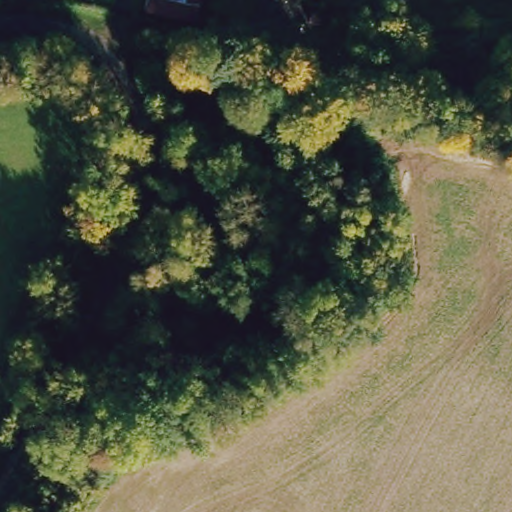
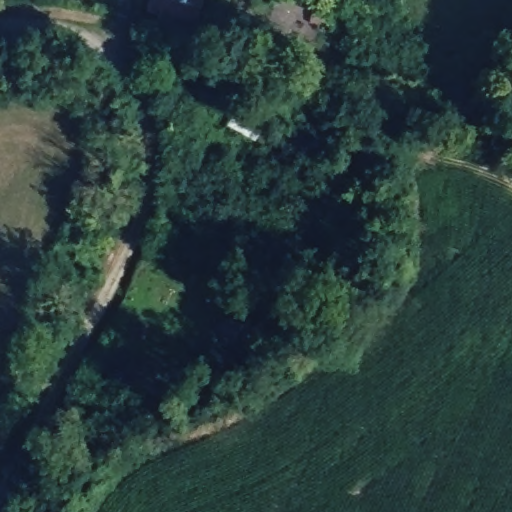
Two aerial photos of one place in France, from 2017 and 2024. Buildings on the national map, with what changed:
unchanged [(202,0),(197,16),(148,2),(149,0),(202,0)]

